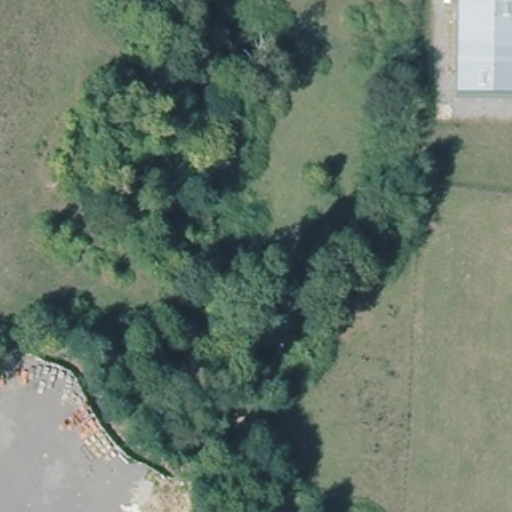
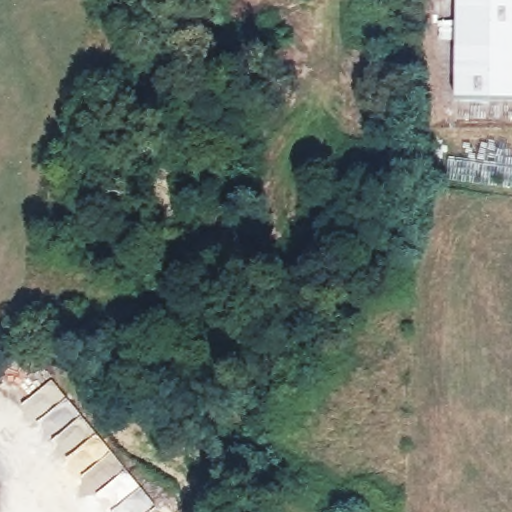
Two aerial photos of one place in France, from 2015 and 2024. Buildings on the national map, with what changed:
unchanged [(455,0),(512,0),(512,102),(453,101),(455,0)]

